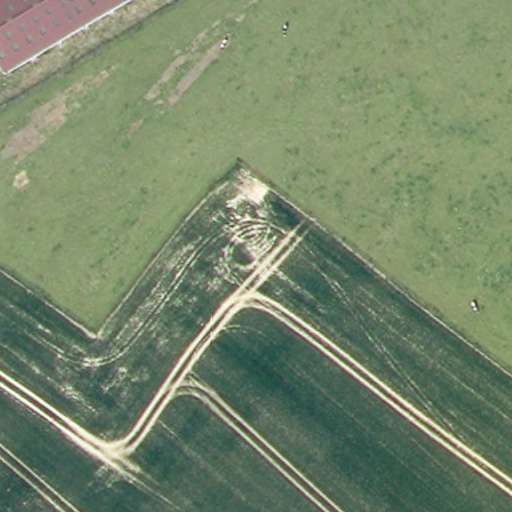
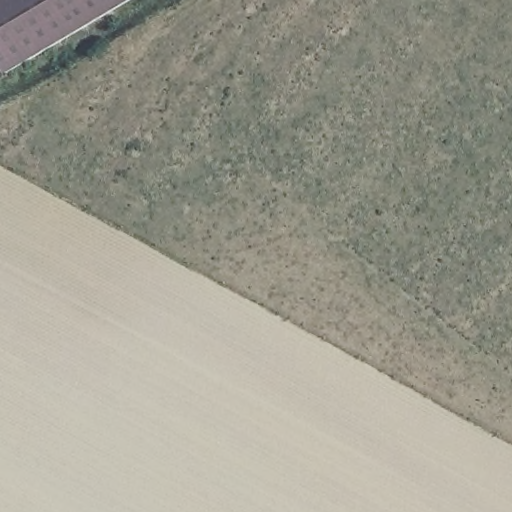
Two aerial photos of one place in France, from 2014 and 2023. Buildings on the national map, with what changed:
unchanged [(0,0),(124,0),(13,64),(0,41),(0,0)]

